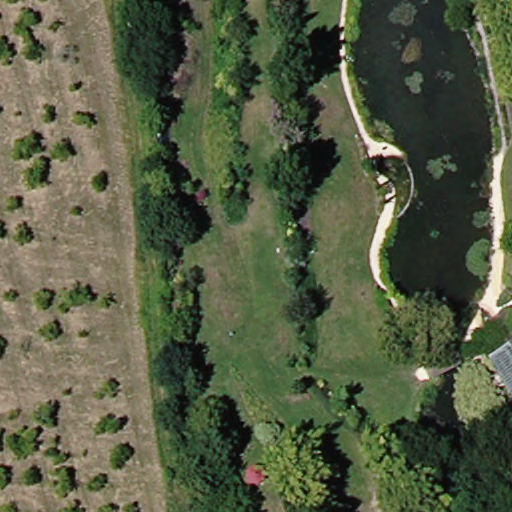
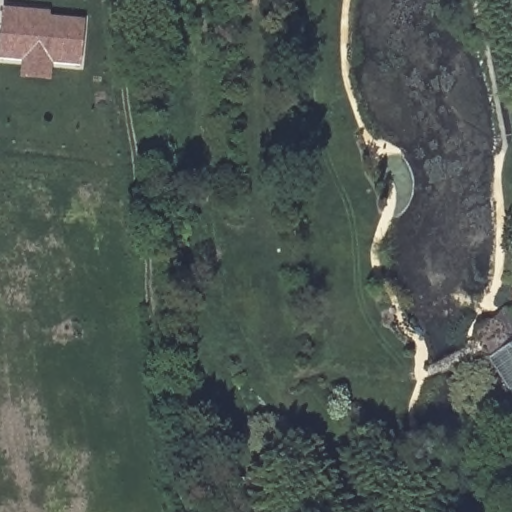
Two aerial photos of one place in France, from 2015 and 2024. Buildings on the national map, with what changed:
new [(49,12),(49,17),(84,20),(81,67),(52,65),(50,81),(20,79),(21,61),(0,60),(0,34),(2,8),(49,12)]
new [(512,348),(512,380),(497,358),(512,348)]

